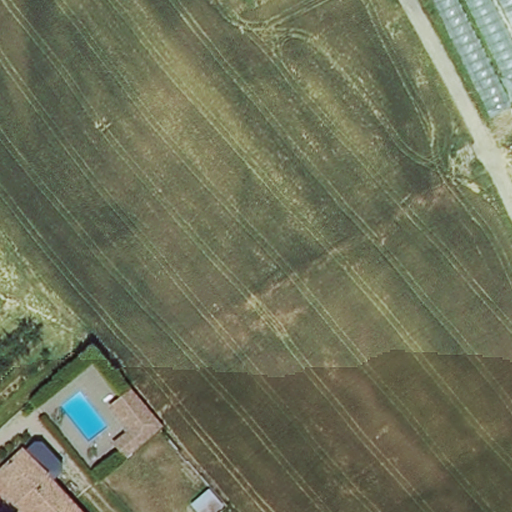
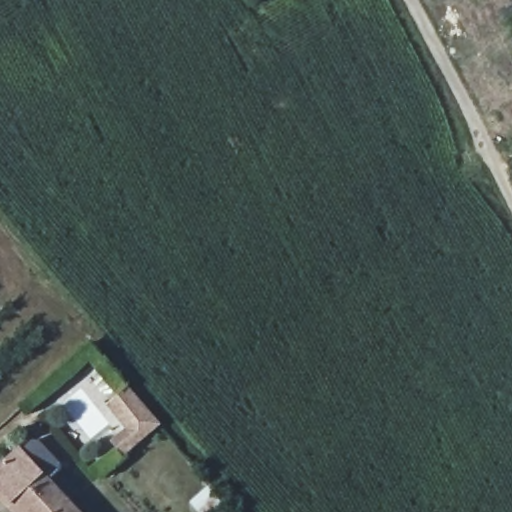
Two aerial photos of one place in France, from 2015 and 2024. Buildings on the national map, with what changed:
demolished [(427,0),(512,0),(512,106),(490,118),(427,0)]
unchanged [(132,387),(165,425),(125,459),(113,444),(127,429),(109,406),(132,387)]
unchanged [(77,512),(17,512),(0,493),(0,469),(20,450),(77,512)]

